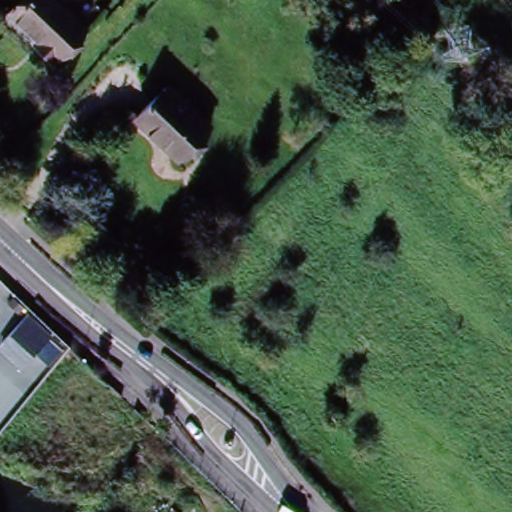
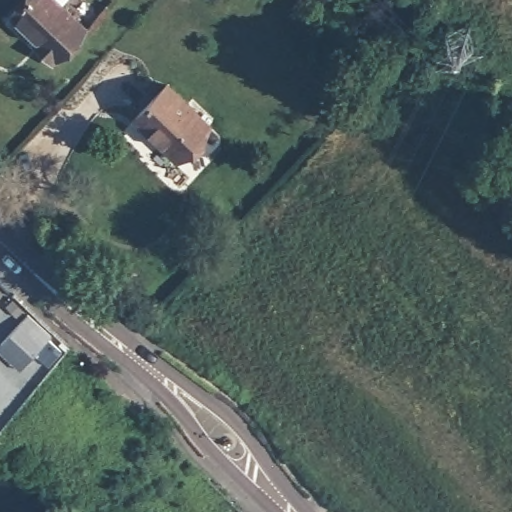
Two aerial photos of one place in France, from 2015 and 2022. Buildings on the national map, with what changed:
unchanged [(40,50),(42,46),(12,17),(29,0),(67,0),(62,5),(87,29),(55,63),(40,50)]
unchanged [(176,87),(218,129),(187,160),(145,120),(176,87)]
unchanged [(20,372),(0,355),(0,347),(28,316),(55,337),(20,372)]

